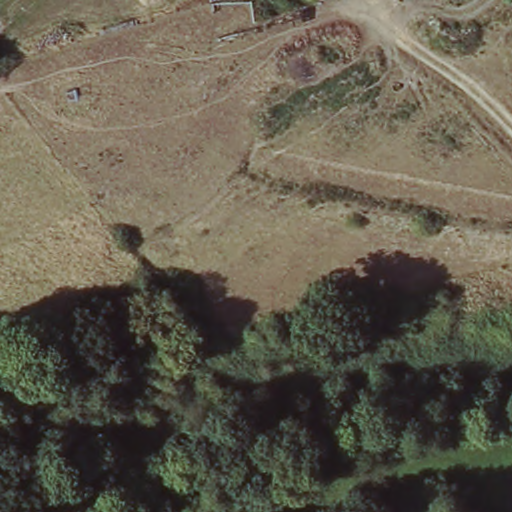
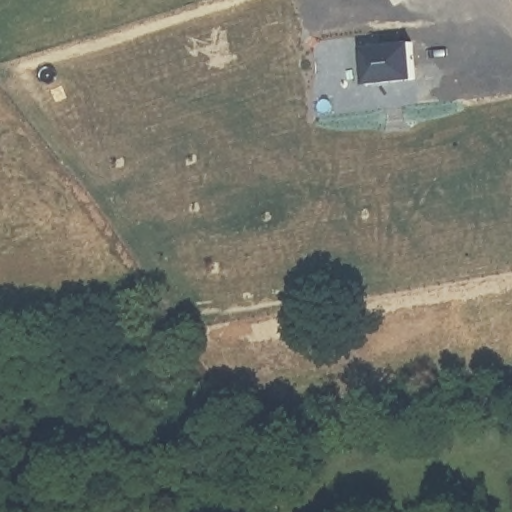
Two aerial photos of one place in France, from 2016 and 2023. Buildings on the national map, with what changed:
unchanged [(413,7),(407,0),(421,0),(413,7)]
new [(363,48),(410,42),(414,79),(367,85),(363,48)]

